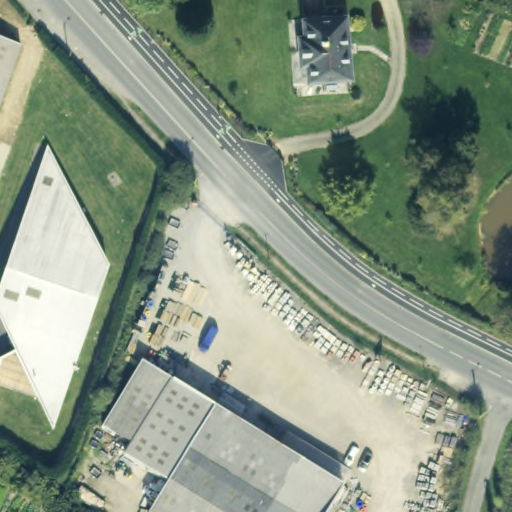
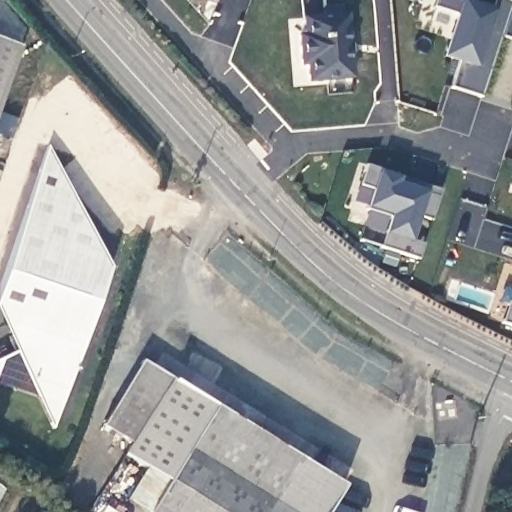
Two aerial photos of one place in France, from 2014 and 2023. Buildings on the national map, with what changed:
new [(463,2),(508,17),(484,97),(451,87),(462,52),(476,57),(479,48),(450,38),(457,15),(434,6),(436,0),(464,0),(463,2)]
new [(508,17),(512,7),(512,42),(501,39),(508,17)]
unchanged [(306,69),(299,69),(298,39),(303,38),(303,20),(343,16),(349,76),(307,82),(306,69)]
unchanged [(23,47),(0,113),(0,38),(23,47)]
unchanged [(36,394),(0,382),(0,355),(14,348),(7,334),(16,312),(1,279),(50,142),(109,273),(63,402),(54,428),(36,394)]
new [(432,221),(417,215),(409,239),(424,243),(419,259),(384,249),(389,235),(385,233),(390,217),(366,209),(373,190),(360,185),(367,164),(399,174),(395,184),(412,189),(415,181),(441,190),(432,221)]
new [(511,302),(512,302),(512,326),(504,324),(511,302)]
unchanged [(267,512),(152,512),(167,484),(123,458),(133,441),(104,423),(142,359),(300,454),(267,512)]
unchanged [(343,480),(324,512),(267,512),(300,454),(343,480)]
new [(512,505),(512,512),(501,512),(502,503),(512,505)]

